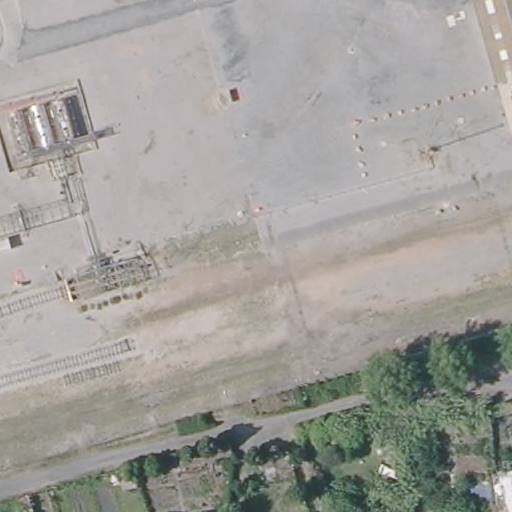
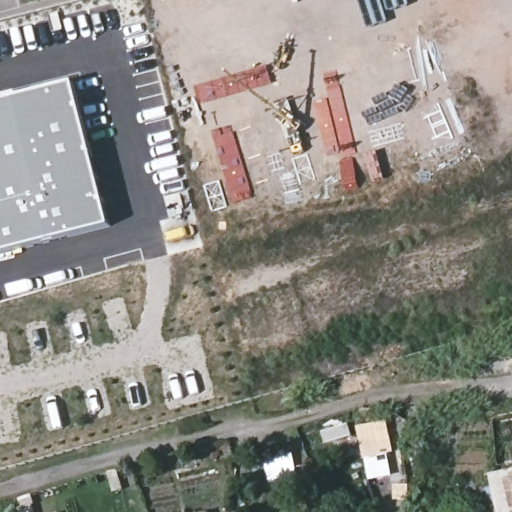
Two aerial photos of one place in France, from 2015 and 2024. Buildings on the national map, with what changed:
demolished [(471,0),(512,0),(512,127),(506,129),(471,0)]
new [(75,81),(111,227),(0,255),(0,99),(5,98),(75,81)]
new [(512,470),(512,512),(496,512),(489,473),(512,470)]
unchanged [(38,512),(18,512),(15,503),(33,499),(38,512)]

